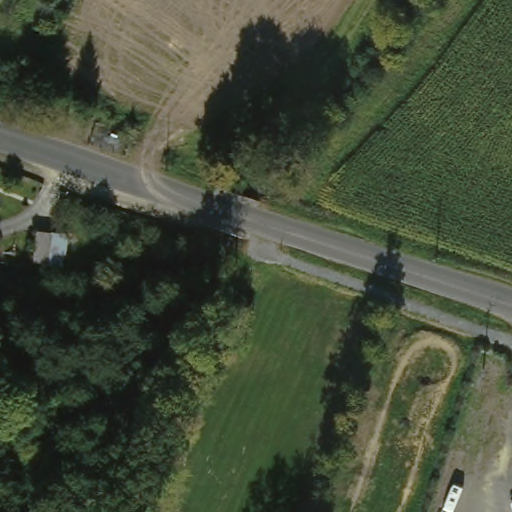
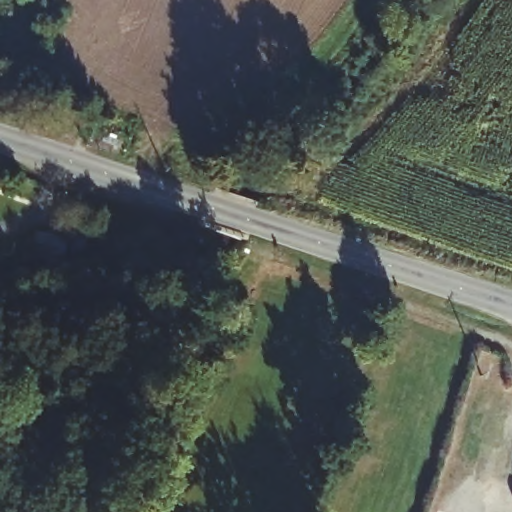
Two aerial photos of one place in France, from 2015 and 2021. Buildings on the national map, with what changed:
unchanged [(14,241),(26,244),(22,270),(10,267),(14,241)]

